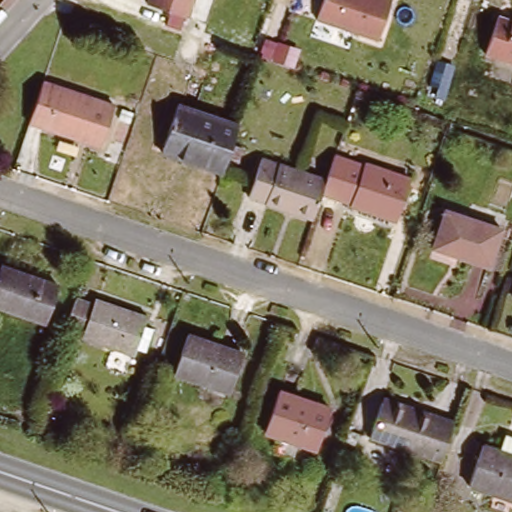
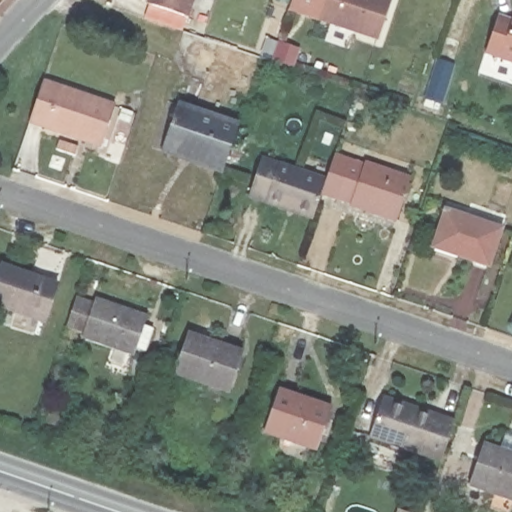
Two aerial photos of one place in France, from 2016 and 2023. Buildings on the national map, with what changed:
unchanged [(149,0),(194,0),(188,18),(147,4),(149,0)]
unchanged [(322,0),(391,0),(378,42),(315,21),(322,0)]
unchanged [(512,18),(512,79),(496,75),(502,62),(486,57),(498,14),(512,18)]
unchanged [(102,142),(30,117),(44,76),(116,101),(102,142)]
unchanged [(160,144),(175,104),(235,125),(218,173),(192,163),(157,151),(160,144)]
unchanged [(125,146),(119,159),(110,156),(115,142),(125,146)]
unchanged [(391,216),(316,191),(321,176),(330,150),(405,176),(391,216)]
unchanged [(316,191),(308,214),(245,192),(257,154),(321,176),(316,191)]
unchanged [(492,225),(480,262),(423,243),(435,206),(492,225)]
unchanged [(40,316),(0,302),(0,259),(53,278),(40,316)]
unchanged [(141,352),(131,349),(129,356),(76,338),(79,331),(62,325),(71,297),(89,303),(91,297),(143,315),(140,324),(150,327),(141,352)]
unchanged [(243,350),(231,384),(175,365),(187,330),(243,350)]
unchanged [(330,410),(315,449),(265,431),(278,392),(330,410)]
unchanged [(442,457),(370,432),(381,398),(383,394),(410,403),(455,418),(442,457)]
unchanged [(470,479),(483,442),(501,448),(506,433),(512,434),(512,494),(470,479)]

